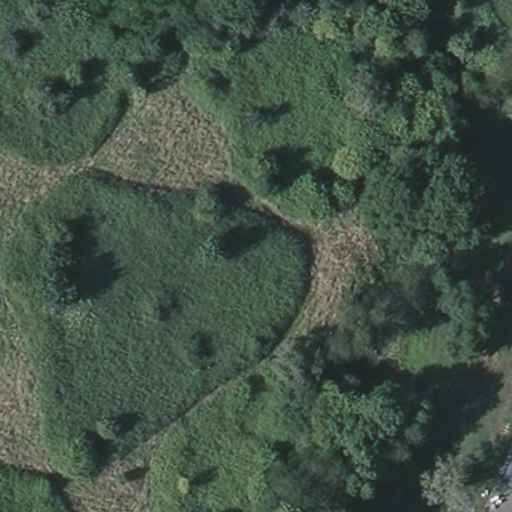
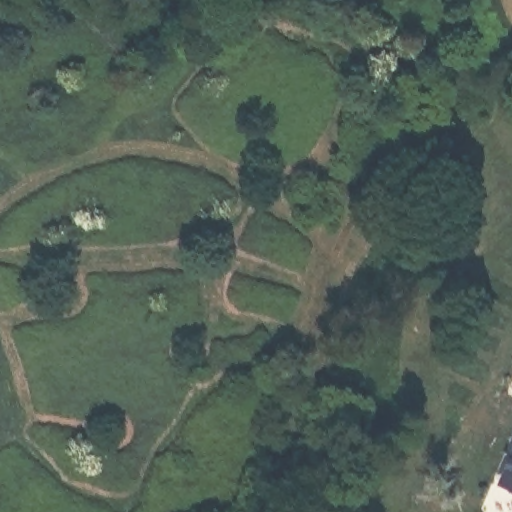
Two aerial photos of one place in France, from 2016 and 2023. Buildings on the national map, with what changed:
unchanged [(512,453),(512,485),(501,480),(512,453)]

